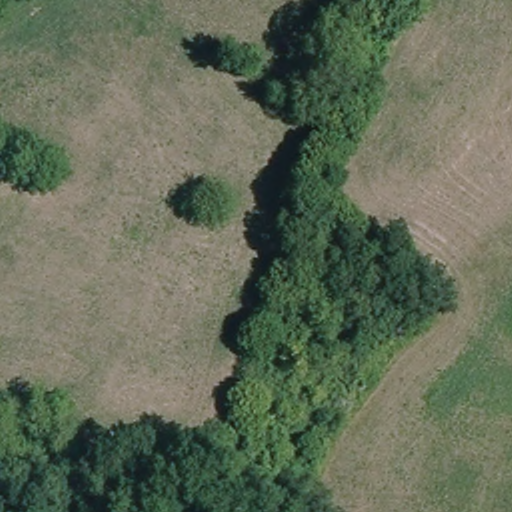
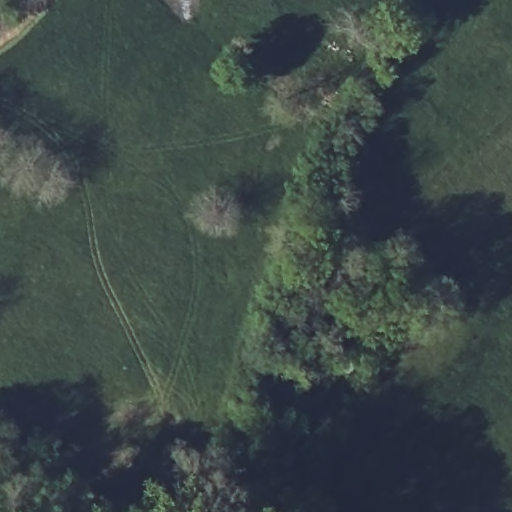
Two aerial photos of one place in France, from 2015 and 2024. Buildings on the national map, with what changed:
[]

